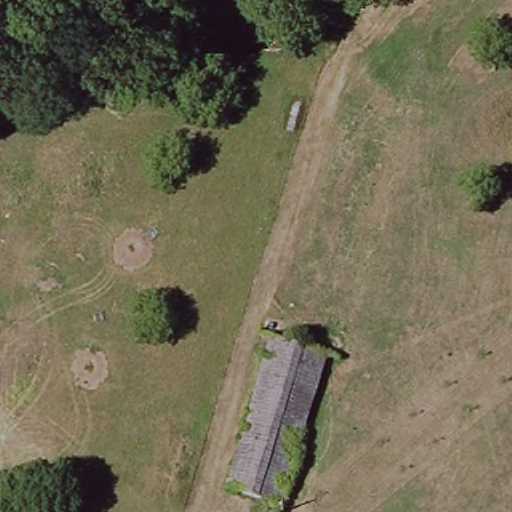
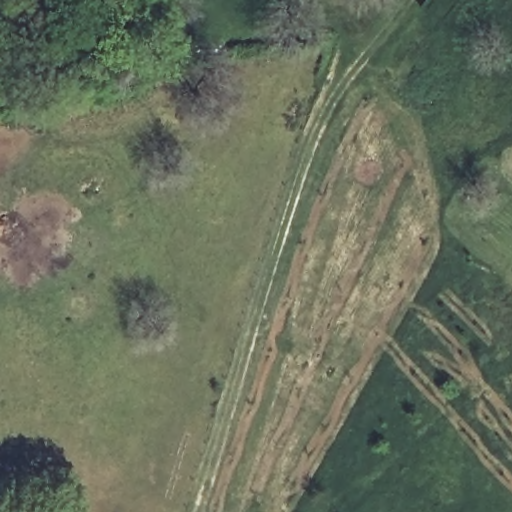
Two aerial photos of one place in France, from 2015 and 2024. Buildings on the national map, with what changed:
demolished [(277,512),(264,512),(267,503),(230,492),(275,346),(324,361),(277,512)]

